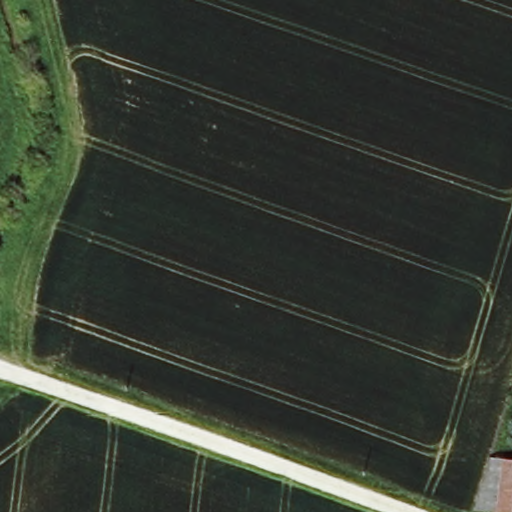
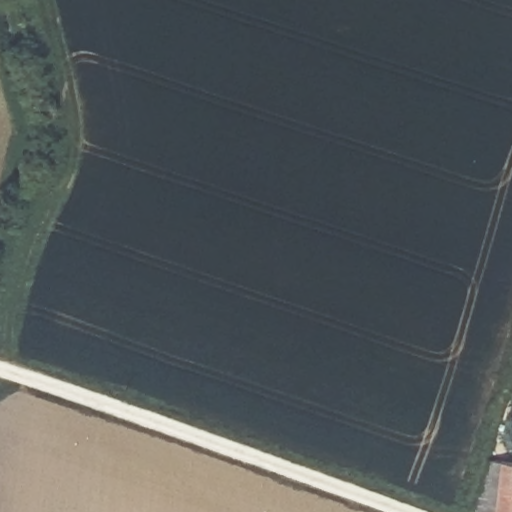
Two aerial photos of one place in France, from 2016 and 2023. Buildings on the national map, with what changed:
unchanged [(475,511),(490,460),(512,461),(512,512),(478,512),(475,511)]

